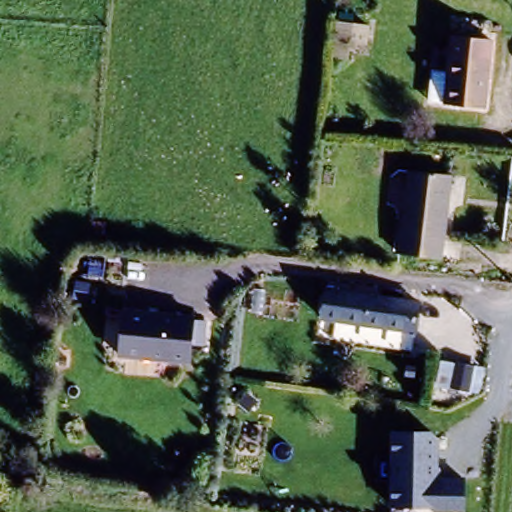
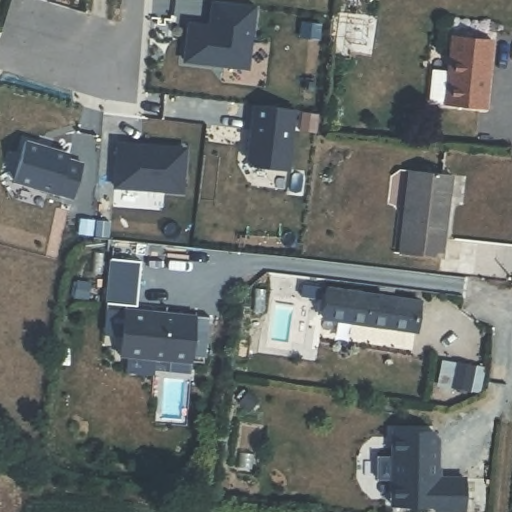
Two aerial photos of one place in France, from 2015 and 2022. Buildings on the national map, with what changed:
new [(192,27),(218,30),(219,20),(214,20),(215,4),(255,7),(249,70),(188,64),(192,27)]
unchanged [(446,43),(489,46),(484,115),(440,113),(446,43)]
new [(254,109),(294,112),(287,173),(253,169),(248,164),(254,109)]
new [(70,161),(86,165),(77,200),(17,184),(28,144),(72,156),(70,161)]
new [(189,150),(187,195),(117,190),(119,144),(189,150)]
unchanged [(405,177),(447,180),(439,265),(398,262),(405,177)]
new [(137,305),(113,303),(112,311),(107,311),(109,261),(139,262),(137,305)]
unchanged [(323,293),(415,301),(412,331),(320,325),(323,293)]
unchanged [(122,311),(194,315),(189,360),(119,355),(122,311)]
unchanged [(477,370),(474,396),(457,393),(460,368),(477,370)]
demolished [(472,423),(469,457),(446,454),(449,420),(472,423)]
unchanged [(431,432),(441,439),(440,474),(466,475),(465,512),(434,512),(434,508),(388,507),(392,431),(431,432)]

